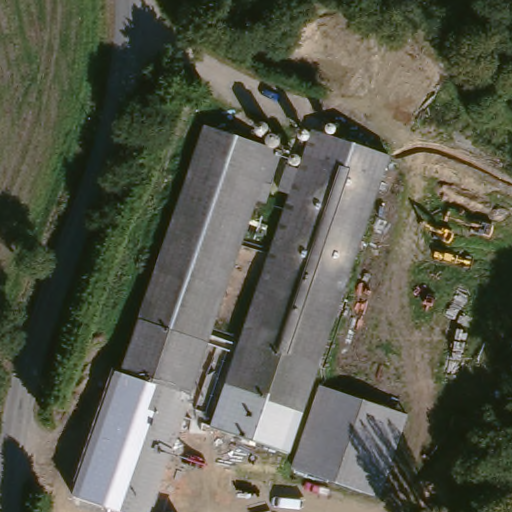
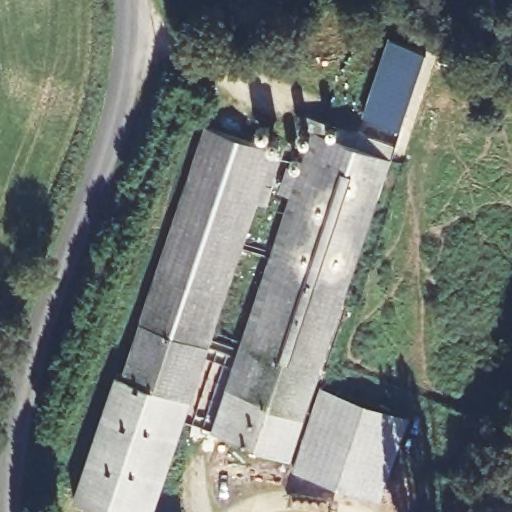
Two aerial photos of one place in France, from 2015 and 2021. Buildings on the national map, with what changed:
new [(363,116),(388,41),(424,52),(399,129),(363,116)]
unchanged [(393,161),(297,418),(222,387),(319,131),(393,161)]
unchanged [(271,159),(233,260),(179,403),(112,379),(201,134),(271,159)]
unchanged [(120,383),(179,403),(233,260),(153,510),(151,512),(118,512),(72,497),(112,379),(120,383)]
unchanged [(228,389),(297,418),(285,453),(209,427),(222,387),(228,389)]
unchanged [(406,419),(374,504),(289,471),(322,388),(406,419)]

